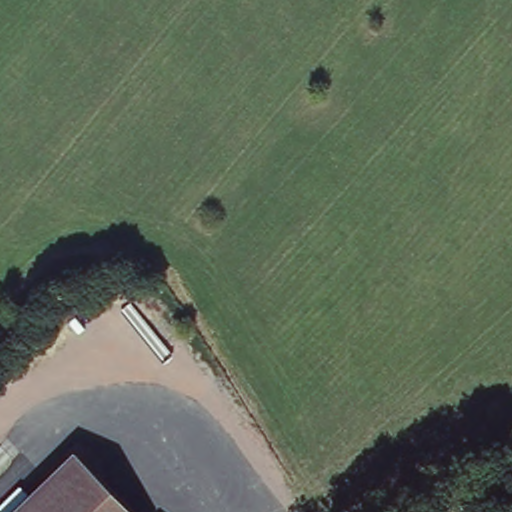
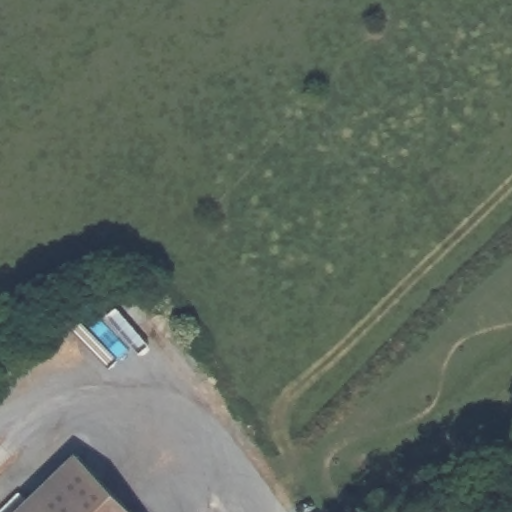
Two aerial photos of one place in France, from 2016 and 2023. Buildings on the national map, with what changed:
unchanged [(15,512),(68,455),(123,512),(15,512)]

